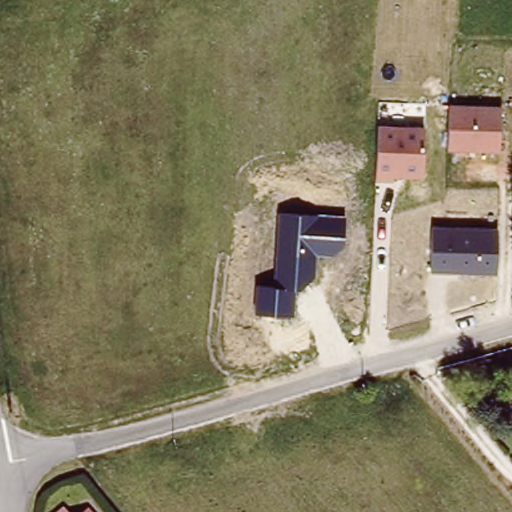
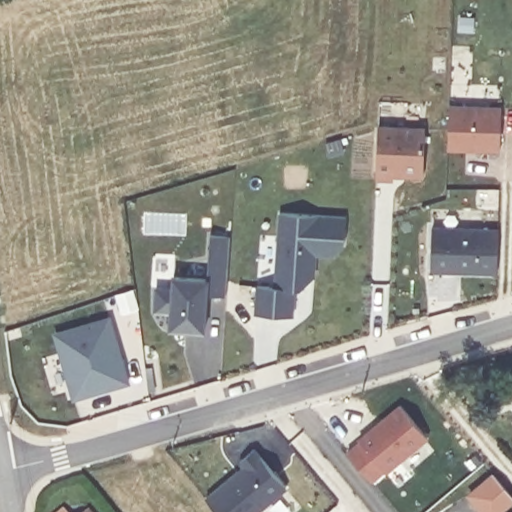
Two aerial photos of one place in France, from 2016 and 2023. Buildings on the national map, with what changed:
unchanged [(499,107),(501,153),(448,152),(451,106),(451,105),(499,107)]
unchanged [(426,128),(424,177),(395,175),(395,183),(374,181),(379,125),(426,128)]
unchanged [(259,283),(273,285),(279,212),(346,215),(344,243),(336,254),(316,253),(314,274),(303,288),(295,289),(293,316),(257,313),(259,283)]
unchanged [(497,274),(430,271),(431,225),(498,229),(497,274)]
new [(168,330),(169,313),(153,313),(155,286),(171,287),(171,274),(206,277),(209,234),(229,236),(226,296),(208,294),(207,331),(168,330)]
new [(73,400),(51,332),(110,315),(130,383),(73,400)]
new [(387,473),(384,471),(372,483),(344,452),(358,440),(357,438),(399,403),(428,437),(387,473)]
new [(259,512),(217,512),(204,496),(241,466),(236,462),(253,447),(288,488),(259,512)]
new [(506,510),(507,512),(479,512),(465,494),(491,471),(512,495),(512,504),(506,510)]
unchanged [(93,512),(80,512),(88,505),(93,512)]

